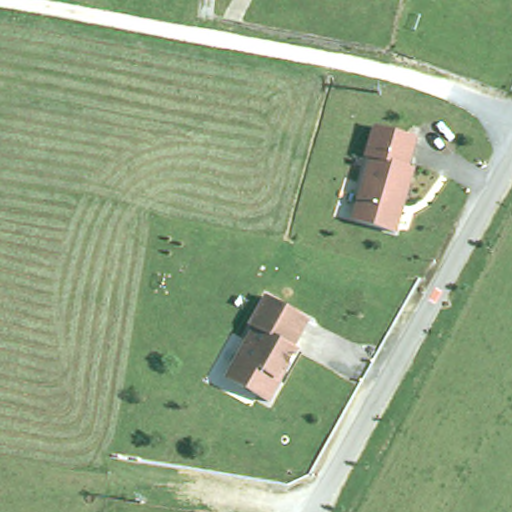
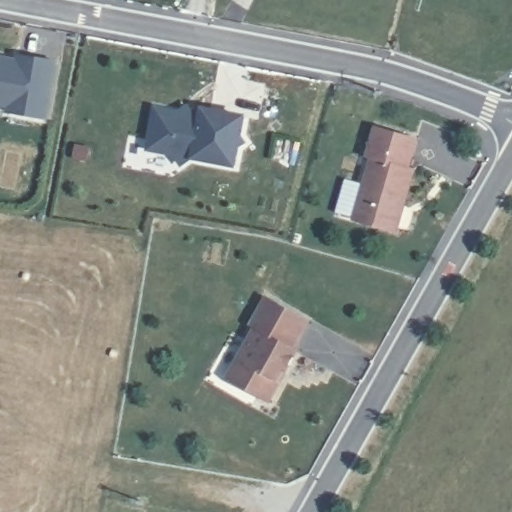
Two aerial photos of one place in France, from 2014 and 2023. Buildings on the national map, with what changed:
new [(47,121),(7,114),(8,107),(0,106),(0,52),(58,61),(47,121)]
new [(246,114),(242,138),(248,144),(240,147),(236,168),(194,159),(179,168),(172,155),(145,151),(153,106),(178,111),(189,103),(246,114)]
unchanged [(353,220),(369,158),(365,156),(373,126),(414,138),(406,167),(412,169),(394,232),(353,220)]
unchanged [(256,328),(251,325),(268,296),(309,319),(293,347),(297,350),(269,401),(228,378),(256,328)]

